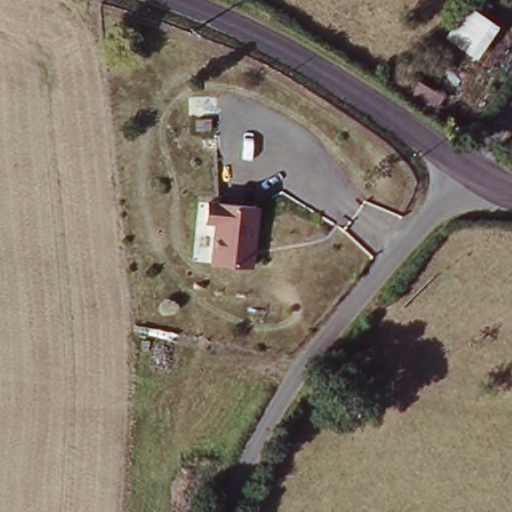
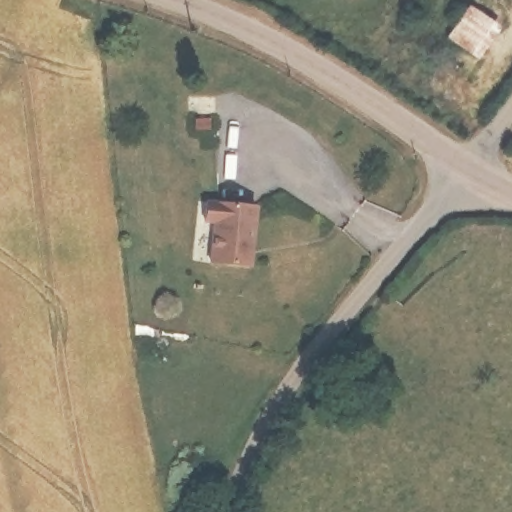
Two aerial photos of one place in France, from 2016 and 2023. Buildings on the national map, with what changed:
unchanged [(499,28),(478,59),(454,42),(476,13),(499,28)]
unchanged [(270,218),(248,274),(211,260),(226,222),(216,219),(223,200),(270,218)]

